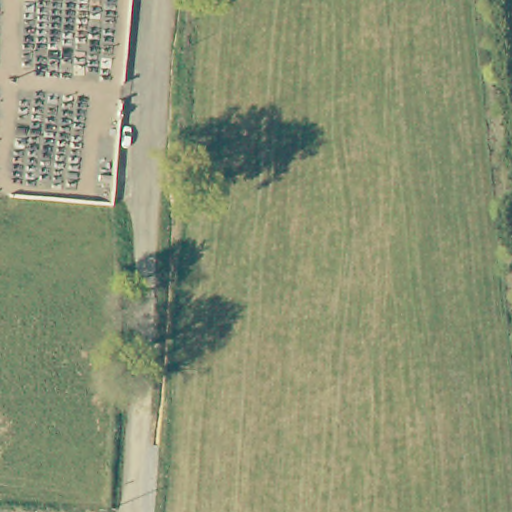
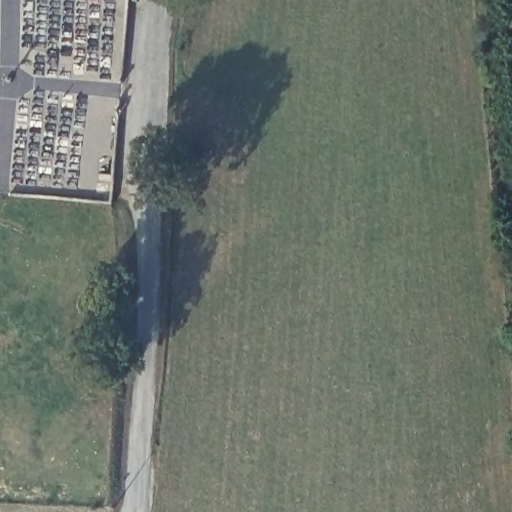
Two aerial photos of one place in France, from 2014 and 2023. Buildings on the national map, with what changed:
[]

